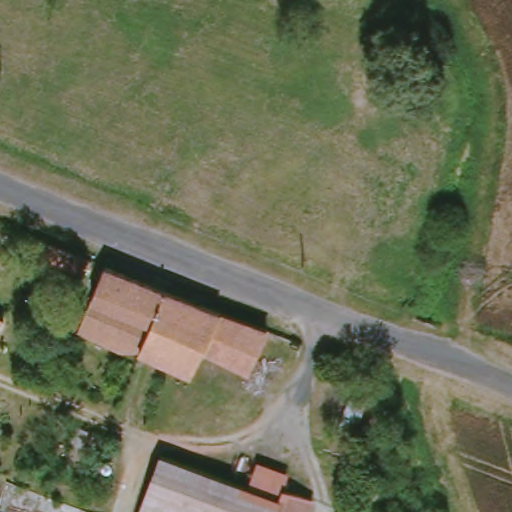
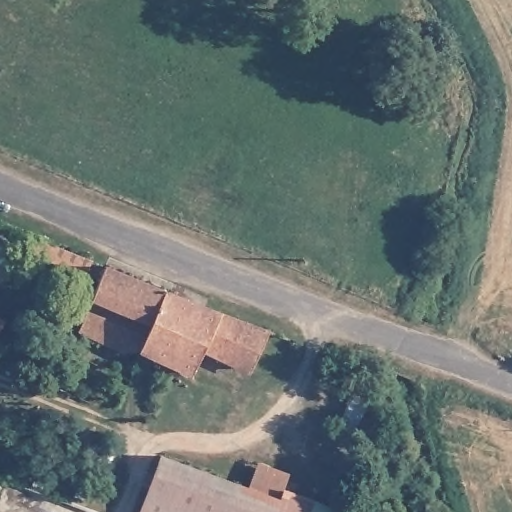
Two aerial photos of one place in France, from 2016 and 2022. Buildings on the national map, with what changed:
unchanged [(86,279),(26,255),(34,237),(94,260),(86,279)]
unchanged [(206,355),(196,379),(169,367),(127,348),(125,354),(81,334),(109,263),(225,311),(206,355)]
unchanged [(256,376),(206,355),(225,311),(275,329),(256,376)]
unchanged [(0,333),(0,319),(6,323),(0,333)]
unchanged [(367,404),(354,439),(335,432),(348,398),(367,404)]
unchanged [(89,434),(81,450),(66,443),(76,426),(89,434)]
unchanged [(147,512),(170,450),(257,482),(268,456),(297,467),(287,493),(290,494),(283,512),(147,512)]
unchanged [(321,495),(314,512),(283,512),(290,494),(294,485),(321,495)]

